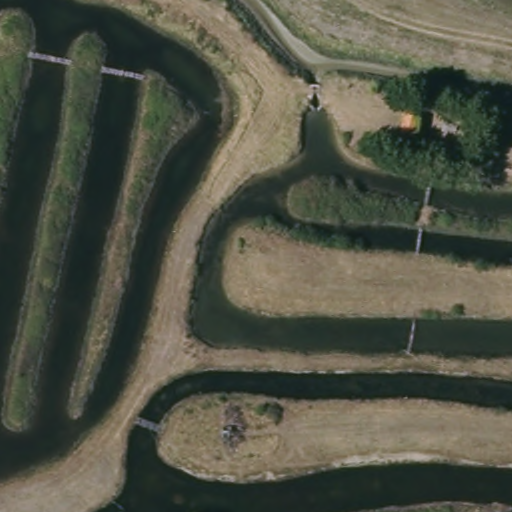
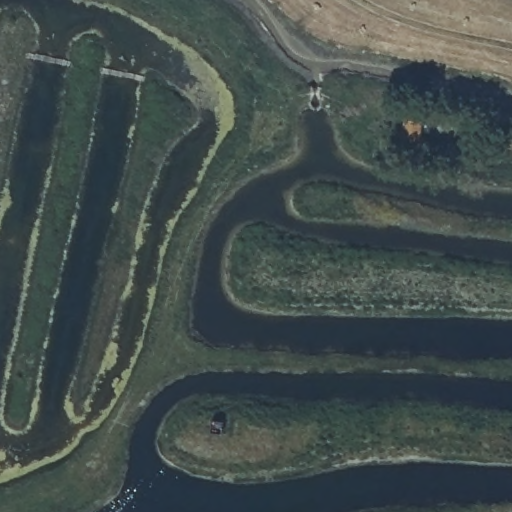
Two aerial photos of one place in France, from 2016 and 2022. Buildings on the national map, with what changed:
unchanged [(424,117),(420,140),(401,137),(405,116),(424,117)]

